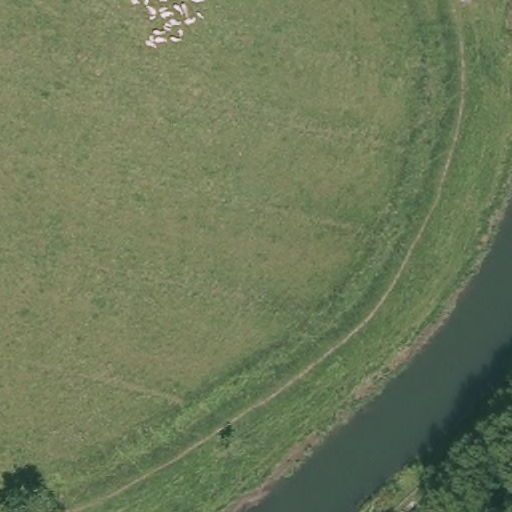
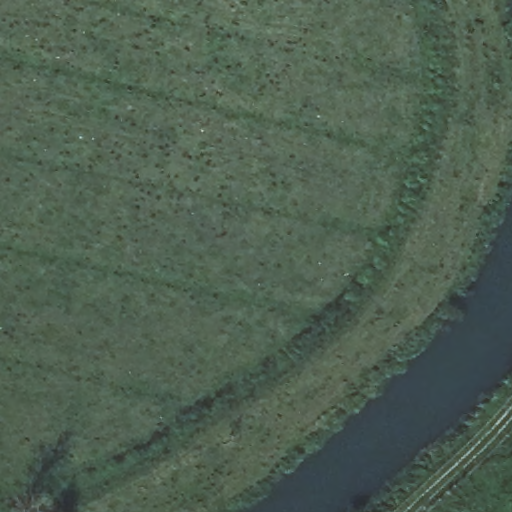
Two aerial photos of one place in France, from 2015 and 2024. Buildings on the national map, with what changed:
[]

